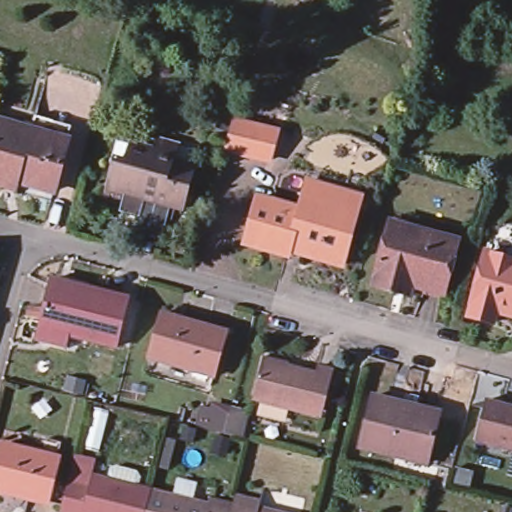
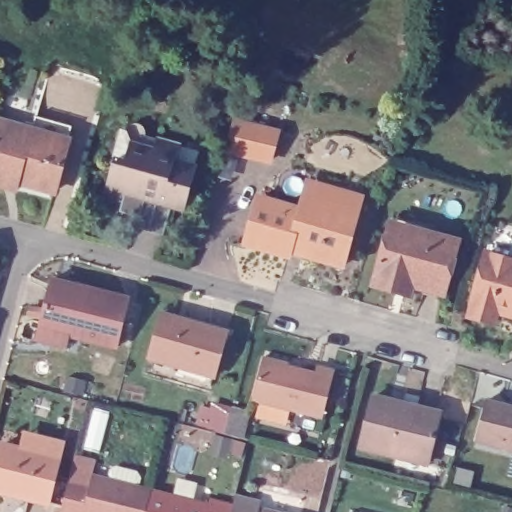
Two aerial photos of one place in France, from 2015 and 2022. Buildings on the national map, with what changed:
unchanged [(0,128),(22,134),(27,119),(61,129),(57,144),(43,194),(9,185),(7,193),(0,191),(0,128)]
unchanged [(234,119),(244,122),(277,132),(269,160),(225,148),(234,119)]
unchanged [(109,166),(119,131),(125,133),(127,129),(129,127),(132,125),(135,125),(137,125),(140,126),(142,128),(144,130),(145,132),(145,135),(145,138),(158,141),(149,172),(116,163),(115,168),(109,166)]
unchanged [(129,197),(125,205),(105,199),(115,168),(116,163),(149,172),(158,141),(176,147),(172,163),(192,169),(195,169),(183,213),(180,212),(172,209),(164,239),(135,230),(142,201),(129,197)]
unchanged [(240,241),(254,195),(297,208),(305,179),(316,183),(318,176),(360,188),(344,244),(338,264),(300,253),(285,249),(284,253),(240,241)]
unchanged [(390,294),(368,287),(382,237),(385,225),(404,230),(452,244),(437,295),(408,287),(405,298),(390,294)]
unchanged [(480,242),(512,251),(512,263),(511,267),(512,267),(512,321),(487,314),(484,326),(458,319),(475,256),(480,242)]
unchanged [(52,279),(66,282),(68,276),(90,282),(87,292),(125,302),(114,346),(80,337),(77,352),(37,341),(40,327),(52,279)]
unchanged [(212,374),(147,358),(158,313),(197,323),(224,330),(222,335),(212,374)]
unchanged [(314,373),(315,366),(332,370),(321,415),(253,398),(262,359),(314,373)]
unchanged [(425,463),(360,446),(372,397),(409,406),(438,413),(437,419),(425,463)]
unchanged [(512,406),(512,450),(475,441),(485,400),(512,406)]
unchanged [(242,438),(202,428),(211,401),(250,409),(242,438)]
unchanged [(42,444),(55,449),(50,464),(51,464),(40,507),(18,501),(9,499),(0,496),(0,450),(37,460),(42,444)]
unchanged [(70,451),(91,457),(87,474),(145,489),(140,512),(56,512),(55,512),(62,483),(70,451)]
unchanged [(229,498),(254,503),(252,509),(252,508),(250,512),(140,512),(145,489),(202,504),(226,509),(229,498)]
unchanged [(252,508),(252,509),(267,512),(250,512),(252,508)]

